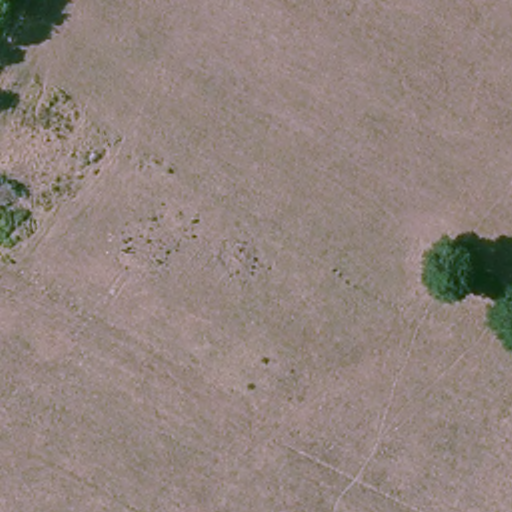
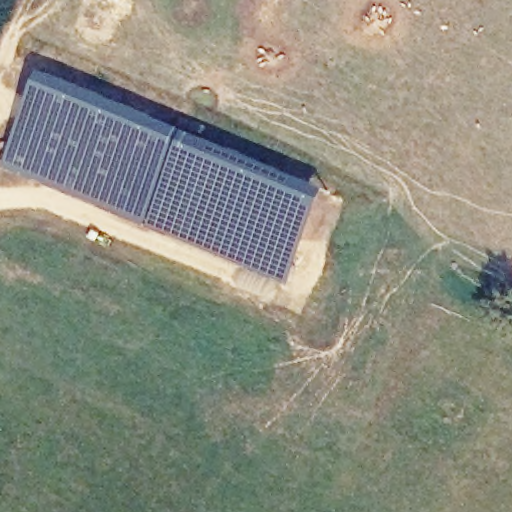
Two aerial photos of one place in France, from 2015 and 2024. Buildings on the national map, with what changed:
new [(289,287),(2,168),(42,72),(329,190),(289,287)]

